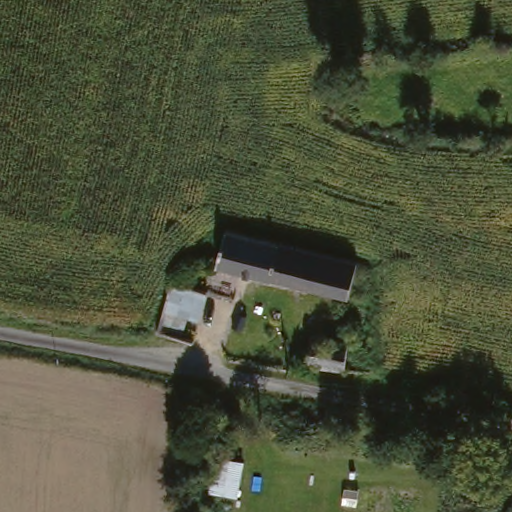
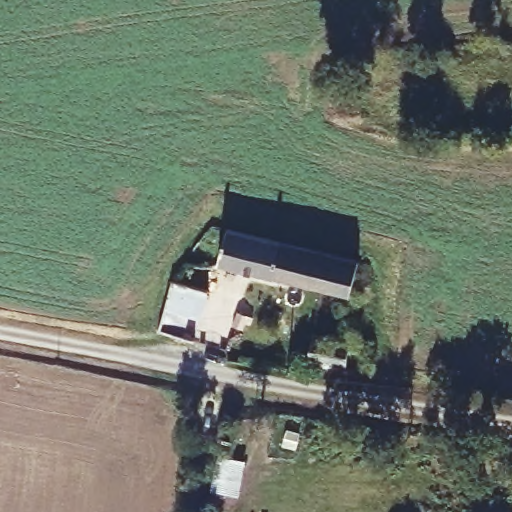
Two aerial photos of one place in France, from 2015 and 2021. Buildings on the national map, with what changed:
unchanged [(211,259),(221,220),(252,229),(277,235),(327,250),(367,261),(356,302),(211,259)]
unchanged [(349,330),(347,365),(293,355),(311,327),(349,330)]

